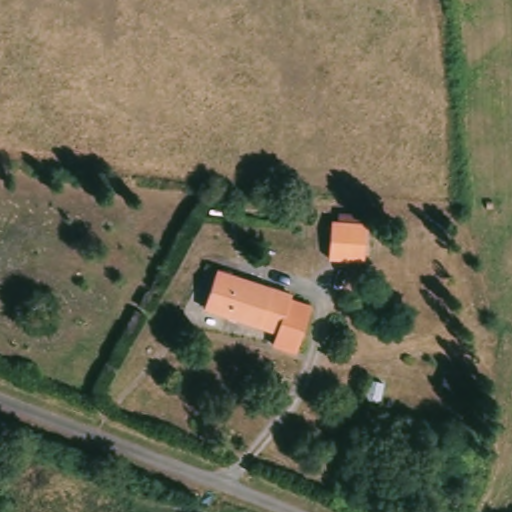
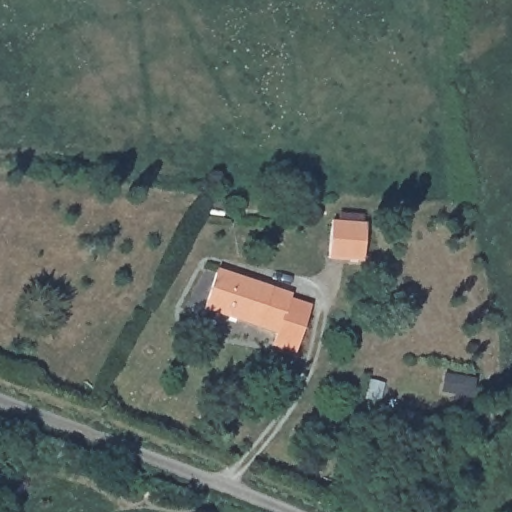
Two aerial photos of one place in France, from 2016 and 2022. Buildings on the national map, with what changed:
unchanged [(331,220),(365,223),(362,261),(362,263),(327,260),(328,253),(331,220)]
unchanged [(290,297),(288,302),(309,310),(294,352),(273,345),(276,335),(201,311),(215,272),(290,297)]
unchanged [(489,450),(477,477),(457,467),(470,441),(489,450)]

